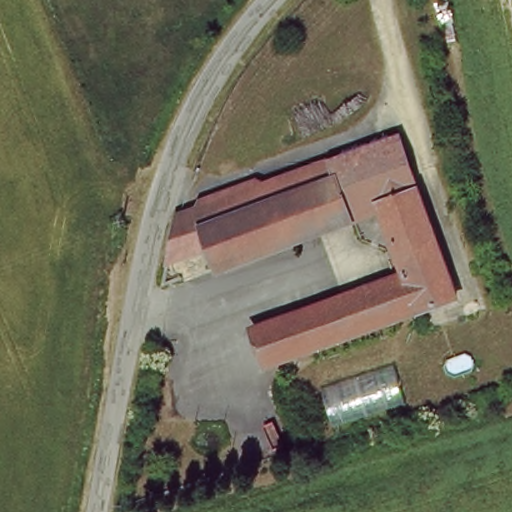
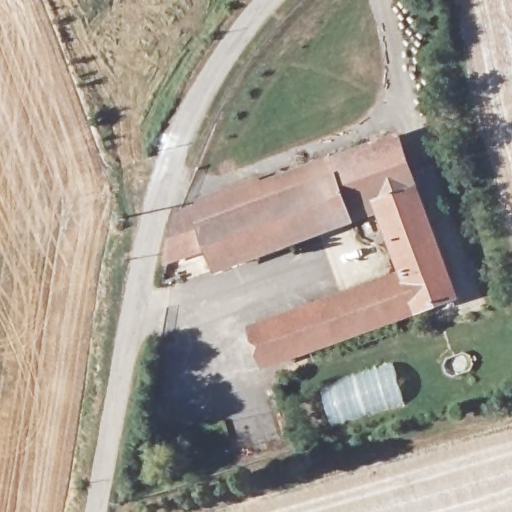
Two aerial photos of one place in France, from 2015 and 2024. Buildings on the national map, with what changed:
unchanged [(390,141),(418,203),(382,219),(352,232),(322,165),(390,141)]
unchanged [(322,165),(352,232),(208,295),(198,271),(152,285),(155,269),(279,217),(266,187),(322,165)]
unchanged [(279,217),(155,269),(170,223),(266,187),(279,217)]
unchanged [(418,203),(462,302),(423,321),(404,274),(382,219),(418,203)]
unchanged [(277,391),(252,339),(404,274),(423,321),(277,391)]
unchanged [(404,406),(331,430),(317,389),(393,365),(404,406)]

